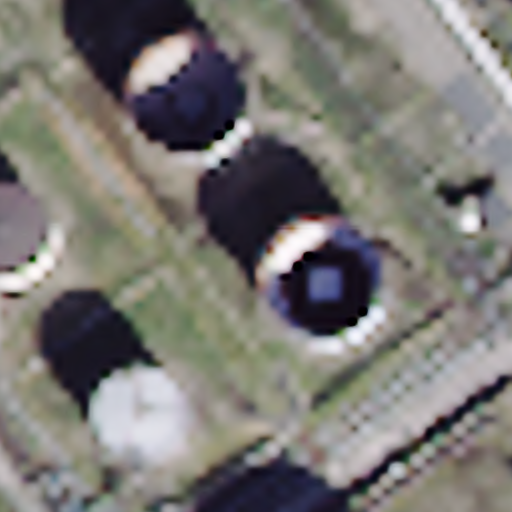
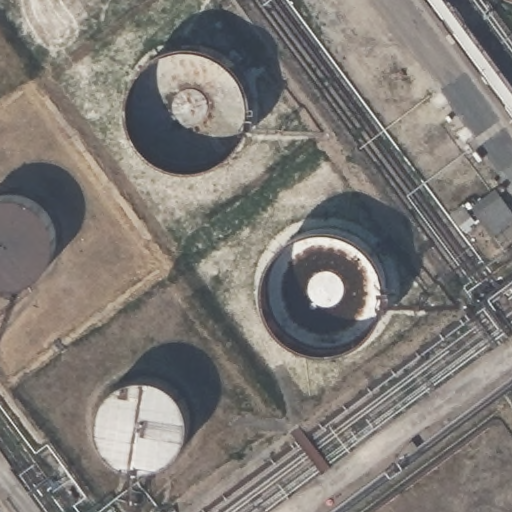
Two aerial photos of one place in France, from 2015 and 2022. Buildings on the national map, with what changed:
unchanged [(490,217),(480,202),(495,191),(506,205),(490,217)]

